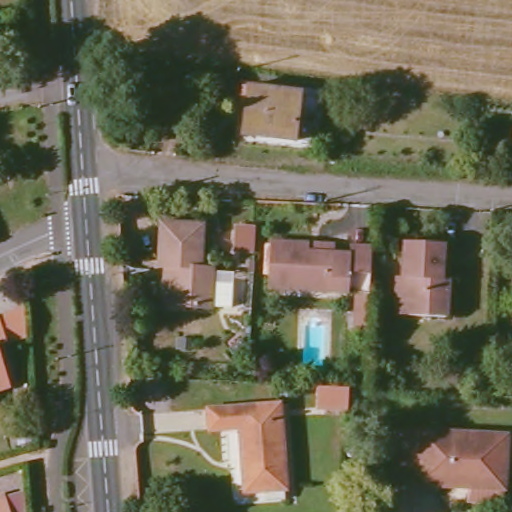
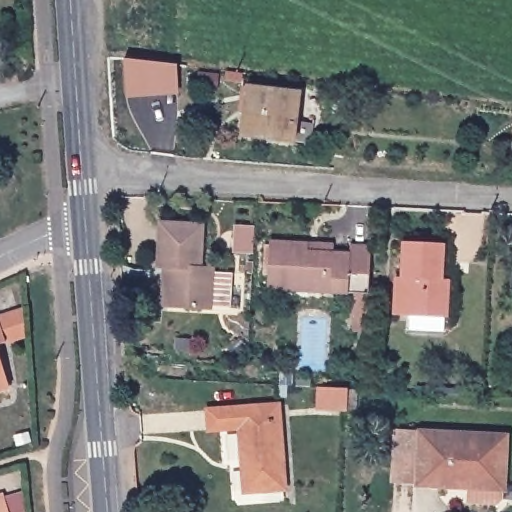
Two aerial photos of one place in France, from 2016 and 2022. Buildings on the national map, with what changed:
new [(160,60),(176,62),(172,90),(156,88),(155,98),(120,93),(125,56),(160,60)]
new [(229,72),(244,74),(243,80),(228,78),(229,72)]
unchanged [(244,132),(249,86),(301,93),(295,139),(244,132)]
unchanged [(170,305),(171,267),(160,267),(161,221),(204,222),(203,265),(216,266),(214,307),(170,305)]
unchanged [(304,284),(265,283),(265,275),(267,235),(308,237),(332,238),(332,247),(348,247),(348,239),(365,240),(365,248),(362,287),(361,323),(347,323),(349,287),(304,284)]
unchanged [(403,313),(404,274),(399,274),(401,235),(440,237),(439,277),(446,277),(445,315),(403,313)]
unchanged [(24,305),(27,334),(5,340),(0,342),(0,314),(24,305)]
unchanged [(8,385),(0,387),(0,359),(8,385)]
unchanged [(309,406),(309,384),(345,386),(363,387),(361,409),(345,408),(309,406)]
unchanged [(245,487),(239,425),(228,425),(211,426),(210,402),(212,402),(279,400),(284,485),(245,487)]
unchanged [(392,480),(394,428),(420,429),(418,481),(392,480)]
unchanged [(468,499),(469,479),(463,478),(463,483),(418,481),(420,429),(506,432),(505,480),(504,495),(499,500),(468,499)]
unchanged [(2,490),(10,512),(0,512),(0,491),(2,490)]

